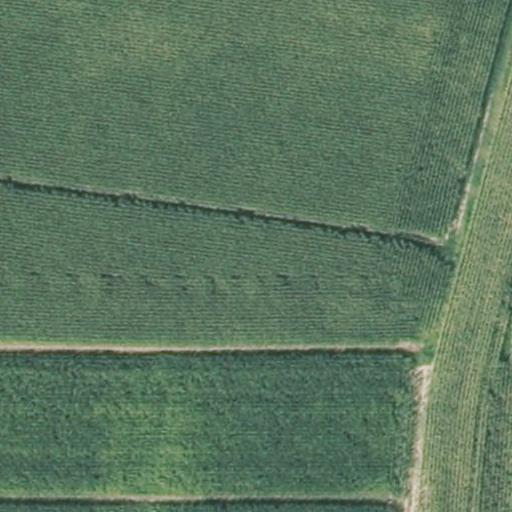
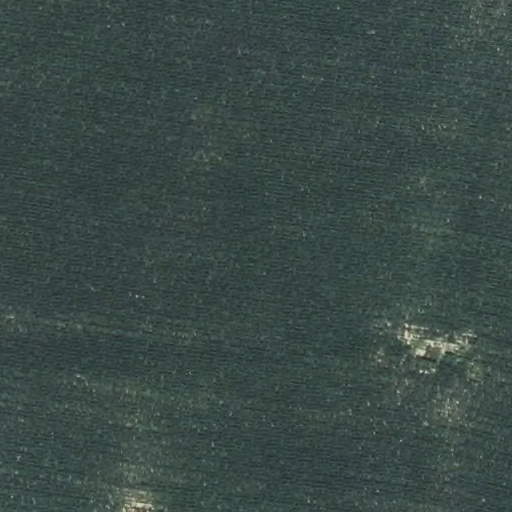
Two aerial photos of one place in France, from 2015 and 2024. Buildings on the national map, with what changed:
[]

